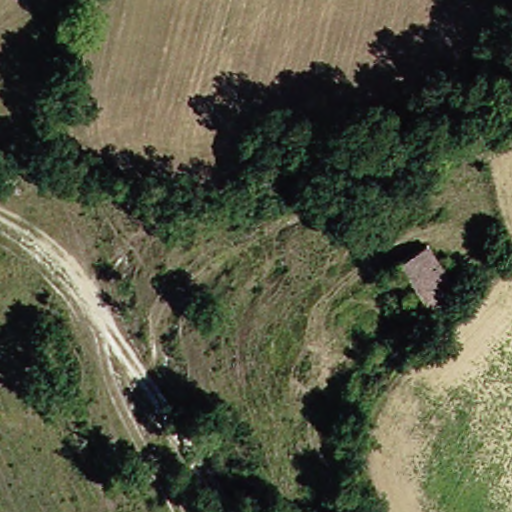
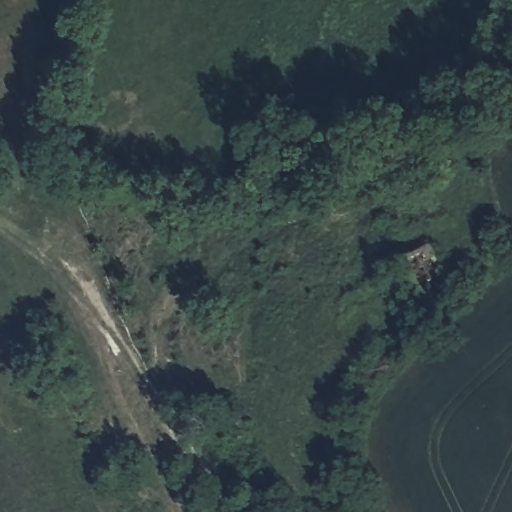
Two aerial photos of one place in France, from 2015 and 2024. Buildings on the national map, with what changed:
unchanged [(413,258),(435,240),(474,299),(451,321),(413,258)]

